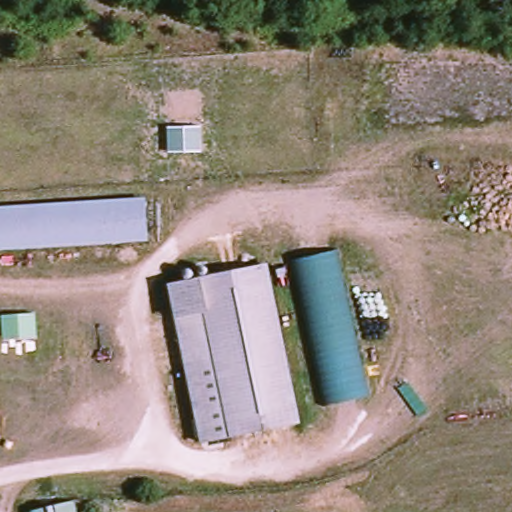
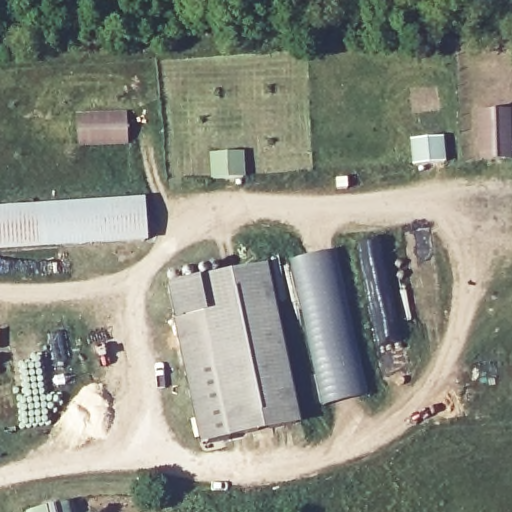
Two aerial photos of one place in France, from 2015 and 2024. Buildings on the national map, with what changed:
new [(128,110),(129,145),(76,146),(74,112),(128,110)]
new [(509,160),(477,160),(477,110),(509,110),(509,160)]
unchanged [(144,242),(0,253),(0,212),(141,201),(144,242)]
unchanged [(336,249),(373,396),(325,408),(291,258),(336,249)]
unchanged [(177,319),(169,283),(269,262),(303,423),(203,443),(177,319)]
unchanged [(71,502),(73,512),(35,512),(71,502)]

